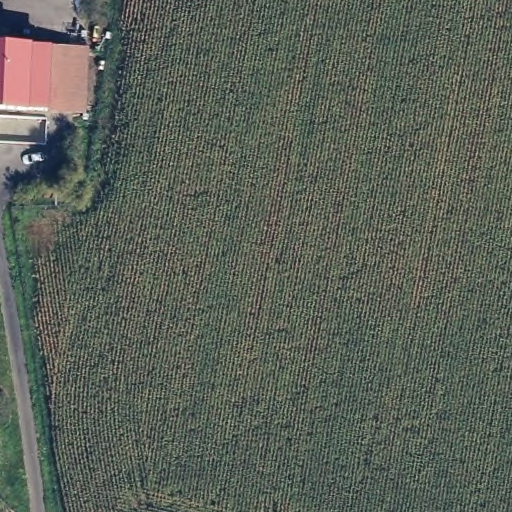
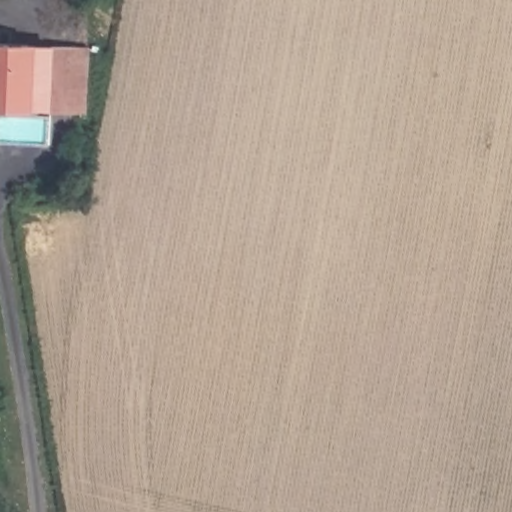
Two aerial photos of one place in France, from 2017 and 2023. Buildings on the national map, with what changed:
unchanged [(32,47),(49,47),(88,45),(84,110),(47,107),(0,107),(0,42),(32,43),(32,47)]

